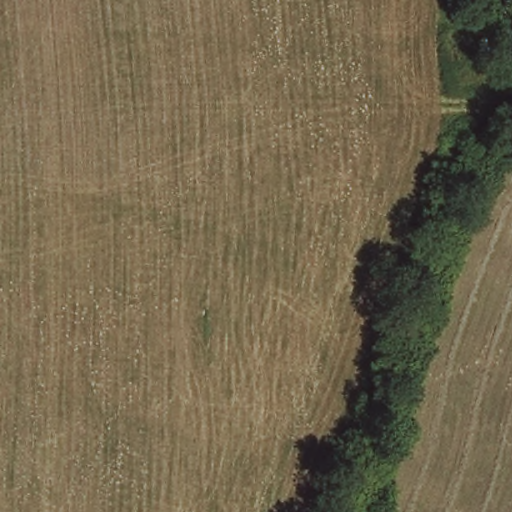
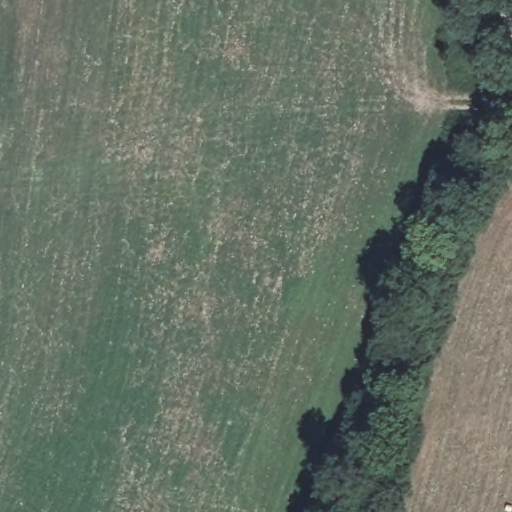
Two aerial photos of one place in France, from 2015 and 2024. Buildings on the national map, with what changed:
[]

